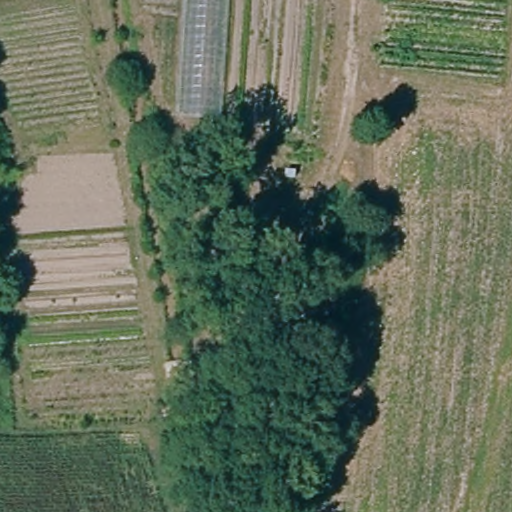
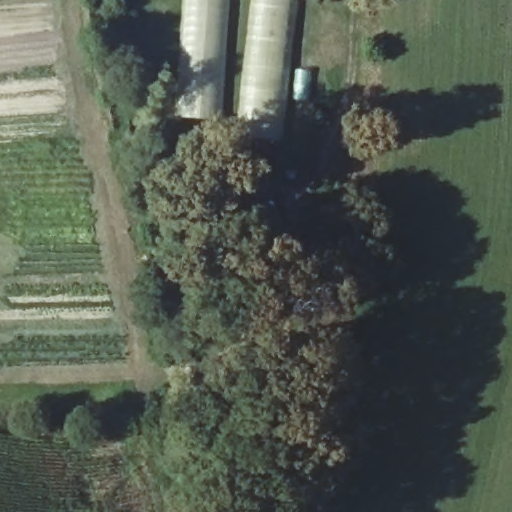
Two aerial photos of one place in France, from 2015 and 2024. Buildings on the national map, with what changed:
unchanged [(178,115),(186,0),(229,0),(220,116),(178,115)]
new [(251,0),(297,0),(283,139),(240,136),(251,0)]

